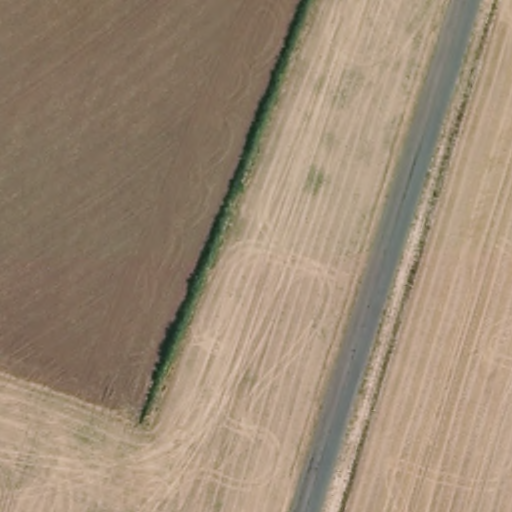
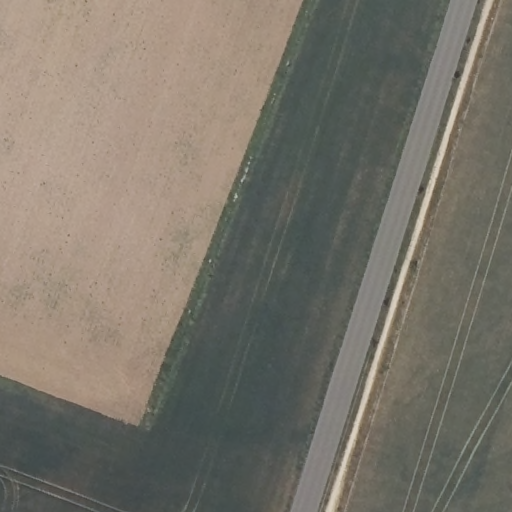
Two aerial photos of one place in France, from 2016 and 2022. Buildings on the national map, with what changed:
[]

